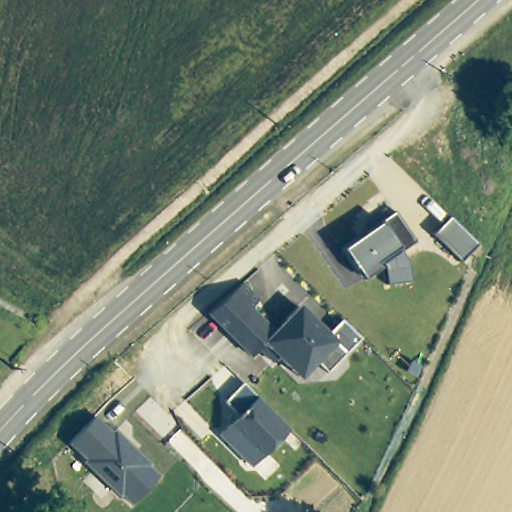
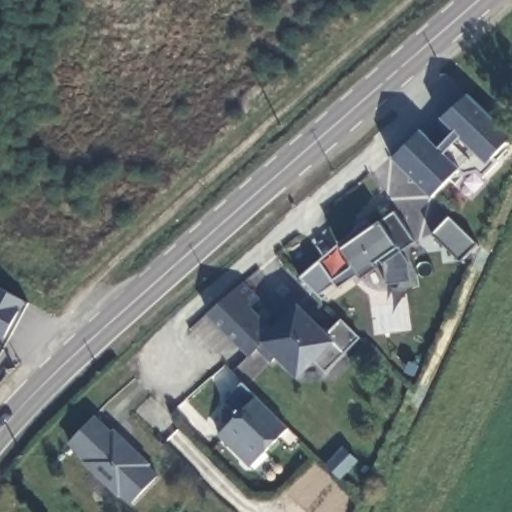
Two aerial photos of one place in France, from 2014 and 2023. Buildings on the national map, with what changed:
new [(492,156),(496,160),(481,175),(476,170),(449,178),(432,196),(395,158),(420,130),(438,147),(455,130),(442,117),(467,92),(511,135),(492,156)]
unchanged [(413,240),(399,250),(395,246),(357,273),(338,247),(356,235),(378,220),(392,210),(413,240)]
unchanged [(460,260),(431,232),(448,215),(477,242),(460,260)]
unchanged [(240,282),(257,299),(248,307),(271,330),(296,305),(325,332),(340,317),(351,328),(359,336),(325,371),(313,360),(297,375),(276,355),(270,360),(257,346),(250,355),(206,312),(240,282)]
new [(0,284),(30,301),(0,355),(0,284)]
unchanged [(287,427),(250,465),(219,433),(237,414),(237,407),(226,396),(241,381),(287,427)]
unchanged [(110,434),(113,431),(147,465),(145,466),(155,477),(129,504),(119,493),(116,495),(83,461),(85,458),(68,440),(92,416),(110,434)]

